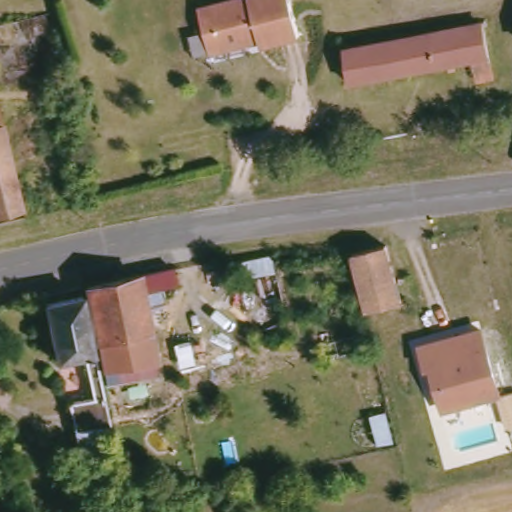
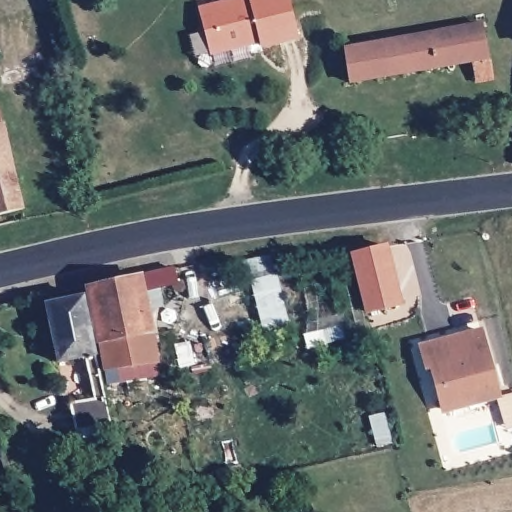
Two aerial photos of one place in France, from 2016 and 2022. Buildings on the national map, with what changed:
unchanged [(202,11),(244,0),(291,0),(301,38),(263,48),(261,38),(252,41),(253,45),(223,52),(213,55),(207,33),(202,11)]
unchanged [(480,83),(476,62),(355,82),(349,49),(487,26),(493,59),(497,80),(480,83)]
unchanged [(28,210),(0,217),(0,105),(2,105),(28,210)]
unchanged [(394,255),(409,322),(373,331),(355,259),(380,256),(394,255)]
unchanged [(194,287),(151,300),(166,360),(120,373),(113,346),(100,288),(186,267),(189,267),(194,287)]
unchanged [(113,346),(98,350),(72,356),(57,298),(100,288),(113,346)]
unchanged [(482,332),(498,393),(442,408),(432,369),(427,370),(421,348),(482,332)]
unchanged [(113,346),(120,373),(130,418),(91,428),(82,397),(108,389),(98,350),(113,346)]

